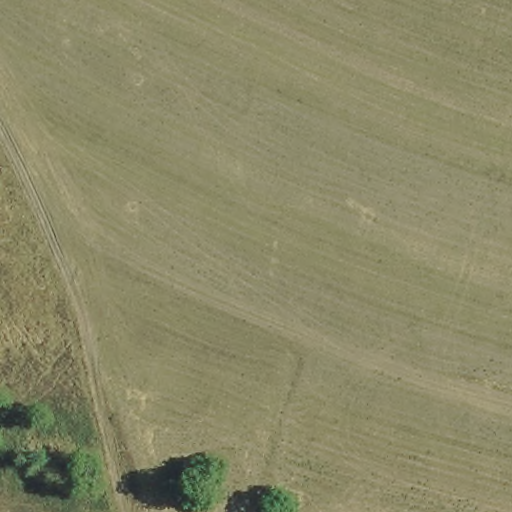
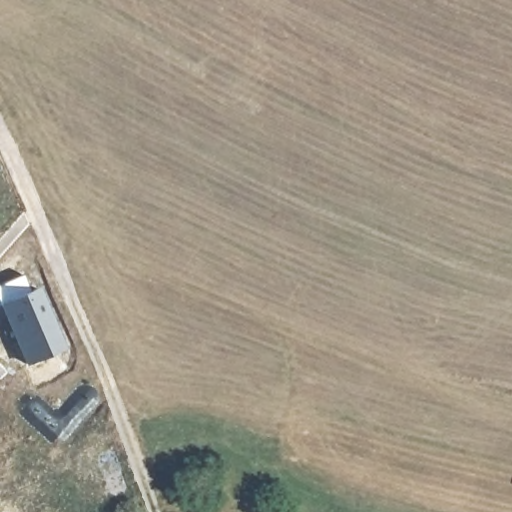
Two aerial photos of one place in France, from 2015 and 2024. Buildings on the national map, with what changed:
new [(30,292),(42,288),(67,349),(26,364),(0,309),(0,284),(23,276),(30,292)]

